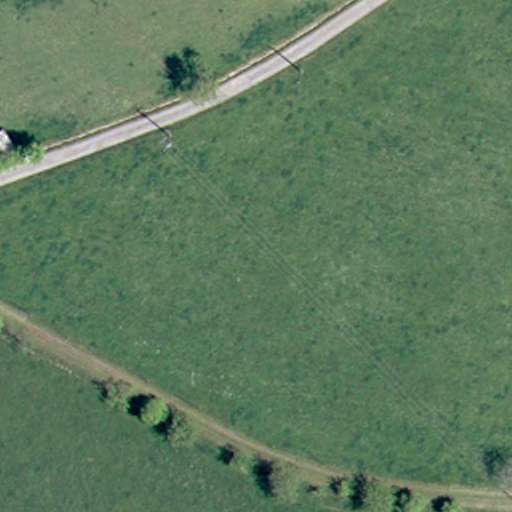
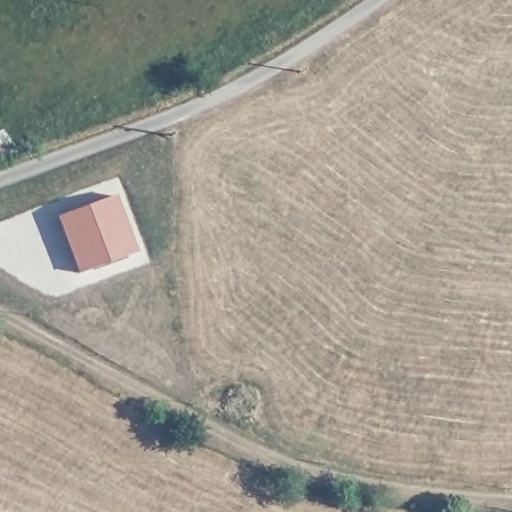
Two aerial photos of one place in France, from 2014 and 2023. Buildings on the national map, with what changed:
new [(116,194),(137,252),(76,274),(57,216),(116,194)]

